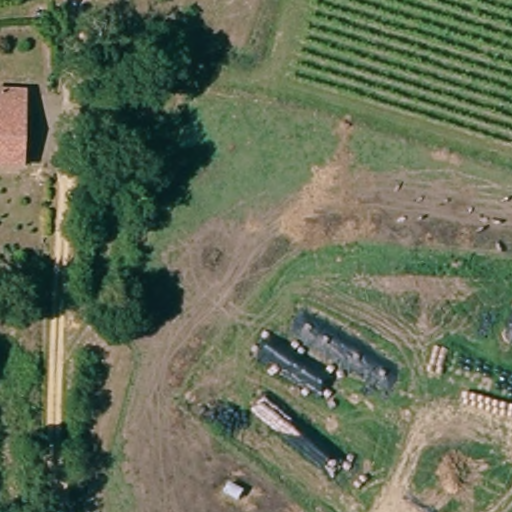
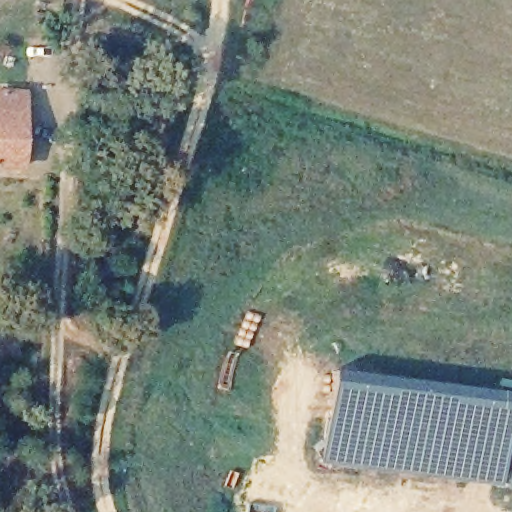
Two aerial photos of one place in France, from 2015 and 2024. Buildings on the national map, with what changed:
unchanged [(18,100),(17,166),(0,167),(0,100),(18,100)]
new [(330,371),(512,393),(512,400),(500,488),(320,465),(330,371)]
new [(512,431),(512,489),(505,487),(512,431)]

